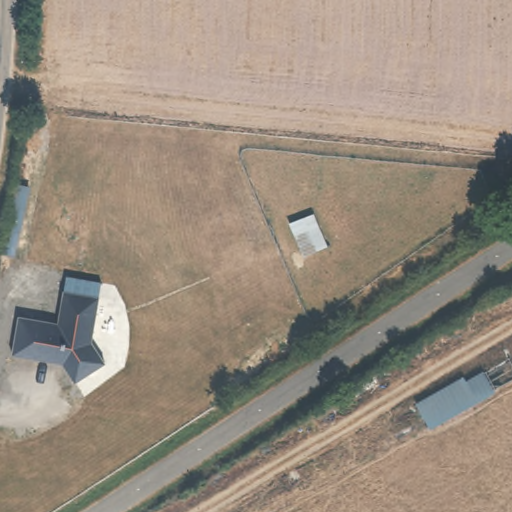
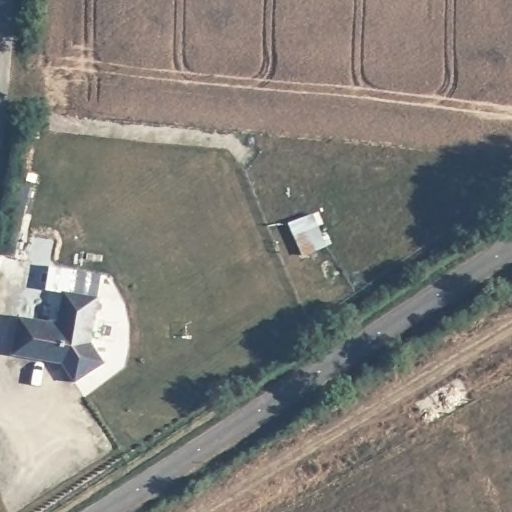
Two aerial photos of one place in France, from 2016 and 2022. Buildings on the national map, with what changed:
unchanged [(98,296),(91,341),(104,362),(75,380),(63,361),(13,354),(19,316),(59,323),(64,291),(98,296)]
demolished [(417,404),(512,351),(512,382),(431,429),(417,404)]

